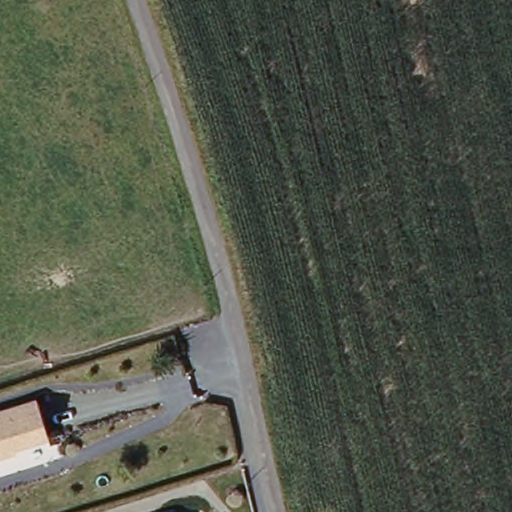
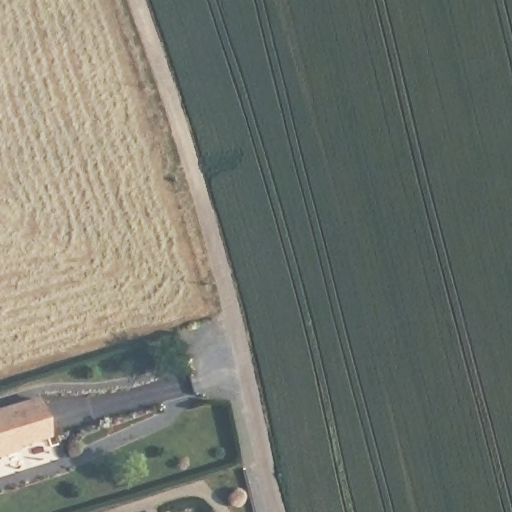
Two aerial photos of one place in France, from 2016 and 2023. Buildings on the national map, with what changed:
unchanged [(48,439),(15,450),(17,457),(0,461),(0,409),(35,398),(48,439)]

